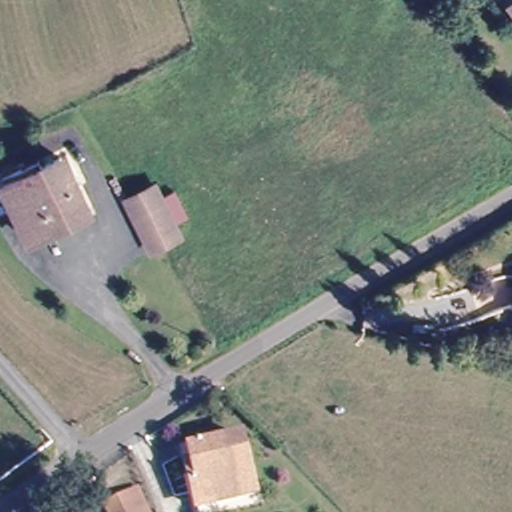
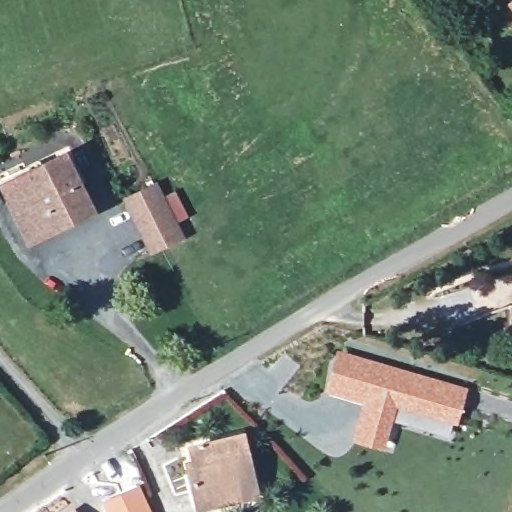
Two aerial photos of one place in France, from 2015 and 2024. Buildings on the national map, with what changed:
unchanged [(499,3),(503,0),(512,0),(512,20),(499,3)]
unchanged [(39,160),(42,166),(66,154),(76,174),(81,185),(76,188),(86,209),(29,236),(4,185),(1,179),(21,169),(39,160)]
unchanged [(155,185),(181,237),(151,252),(126,199),(155,185)]
new [(337,349),(468,387),(457,425),(398,408),(385,451),(352,441),(362,404),(324,392),(337,349)]
unchanged [(241,498),(199,508),(192,481),(198,479),(191,448),(241,436),(250,475),(255,495),(241,498)]
new [(153,512),(107,512),(101,501),(140,484),(153,512)]
demolished [(138,489),(149,512),(108,512),(105,506),(138,489)]
new [(77,512),(69,512),(74,508),(77,512)]

